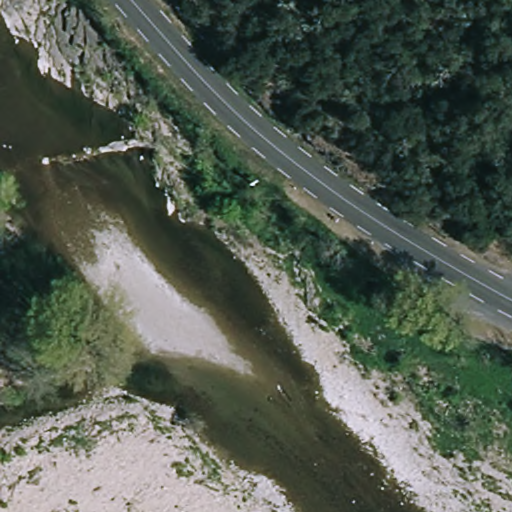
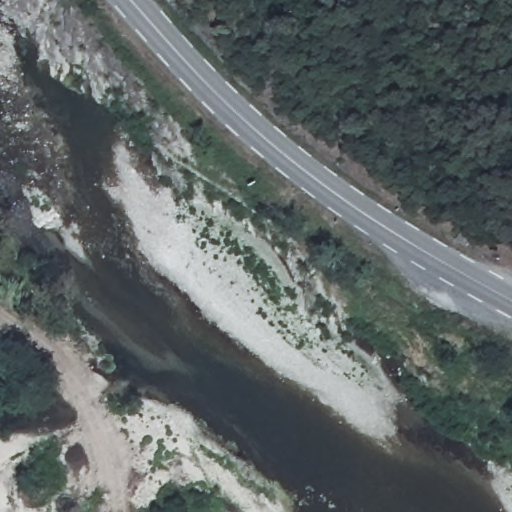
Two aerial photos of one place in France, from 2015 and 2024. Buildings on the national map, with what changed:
[]

